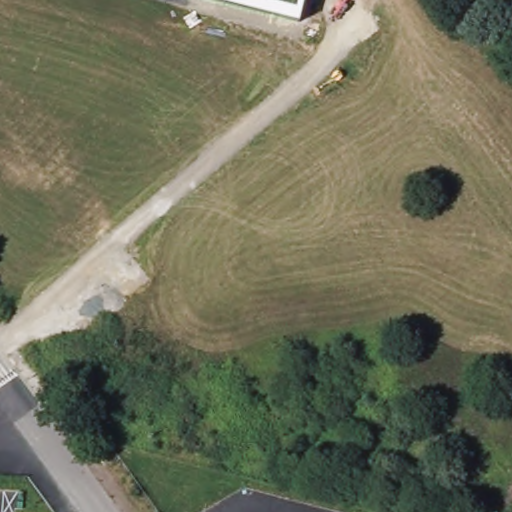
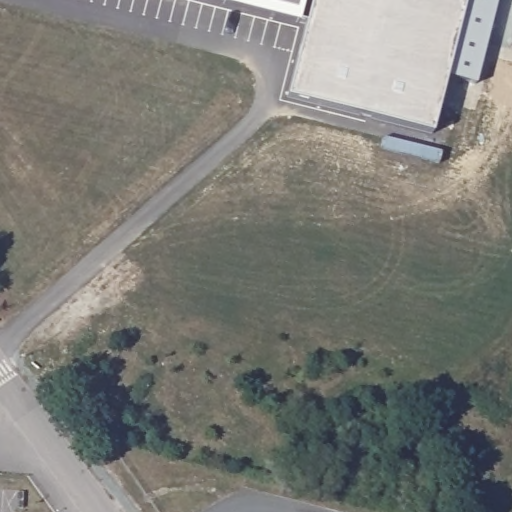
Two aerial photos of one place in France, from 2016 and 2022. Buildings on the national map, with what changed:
unchanged [(208,0),(306,0),(300,23),(208,0)]
new [(466,0),(432,133),(288,96),(312,0),(466,0)]

